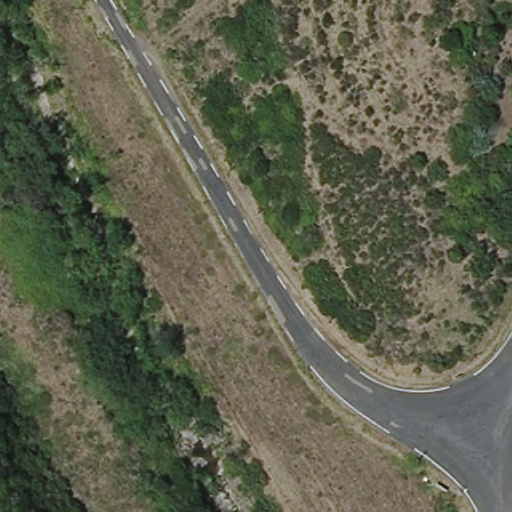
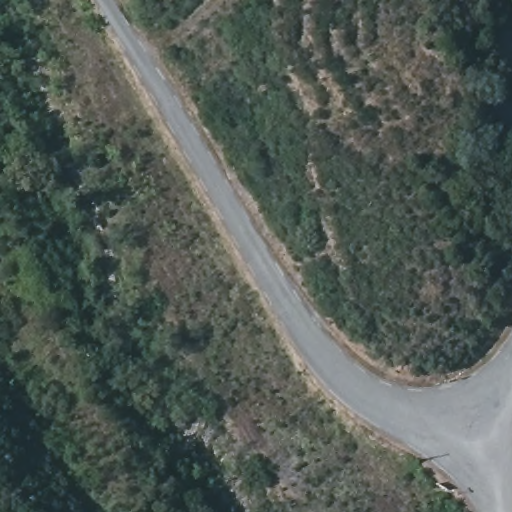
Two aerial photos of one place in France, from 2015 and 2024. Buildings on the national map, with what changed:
[]

